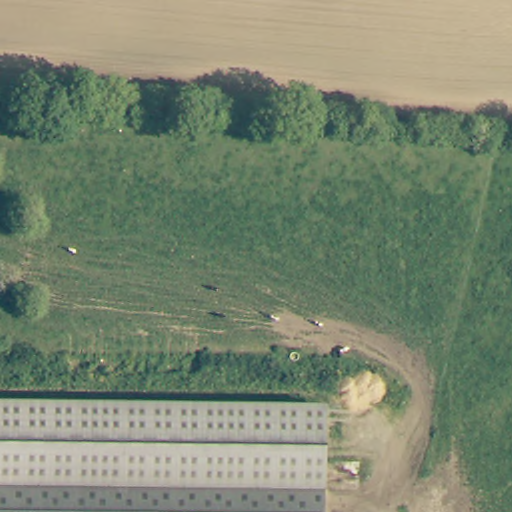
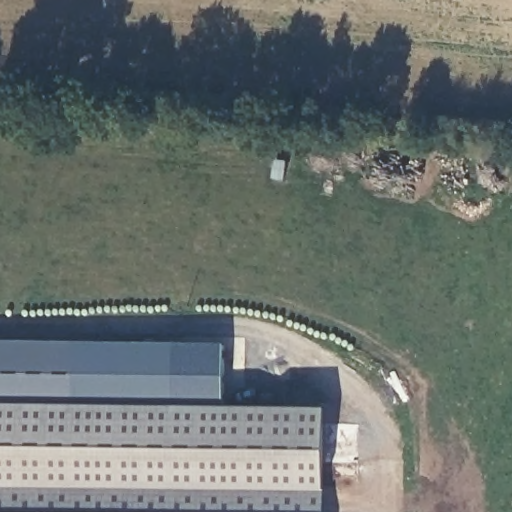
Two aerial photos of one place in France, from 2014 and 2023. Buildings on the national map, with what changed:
new [(224,344),(223,406),(0,403),(0,341),(224,344)]
unchanged [(324,408),(322,483),(0,486),(0,404),(324,408)]
unchanged [(322,483),(322,512),(0,512),(0,486),(322,483)]

